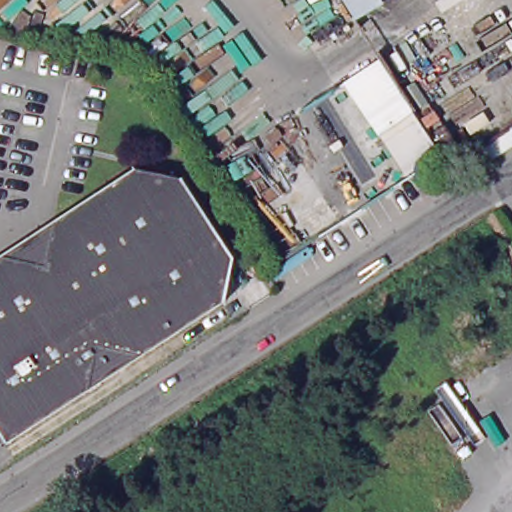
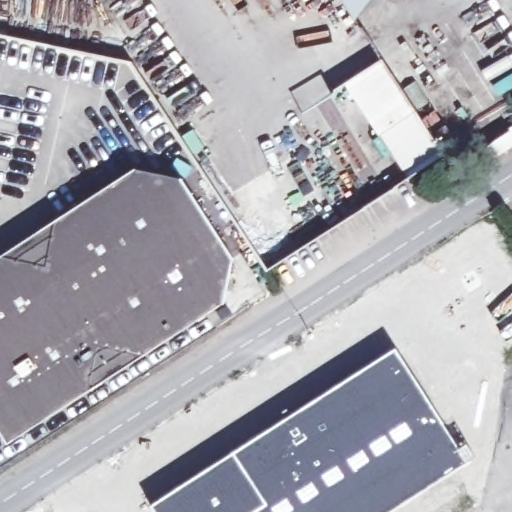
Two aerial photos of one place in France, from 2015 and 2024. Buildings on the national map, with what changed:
new [(329,133),(313,107),(301,115),(289,91),(320,73),(332,94),(330,95),(347,124),(329,133)]
unchanged [(420,192),(414,182),(402,190),(377,151),(410,130),(416,139),(435,167),(435,168),(430,171),(437,181),(420,192)]
unchanged [(465,157),(480,148),(486,157),(471,166),(465,157)]
unchanged [(455,163),(460,171),(445,180),(440,173),(449,167),(455,163)]
unchanged [(0,431),(0,258),(9,252),(59,220),(142,166),(187,175),(237,254),(227,301),(148,352),(94,387),(14,439),(6,427),(0,431)]
new [(335,382),(395,345),(469,461),(384,512),(374,512),(360,492),(335,502),(329,493),(292,512),(270,512),(267,507),(232,451),(335,382)]
new [(232,451),(267,507),(262,510),(263,512),(155,512),(150,504),(232,451)]

